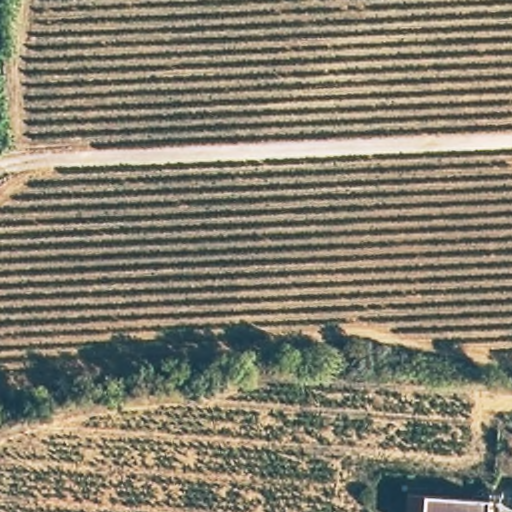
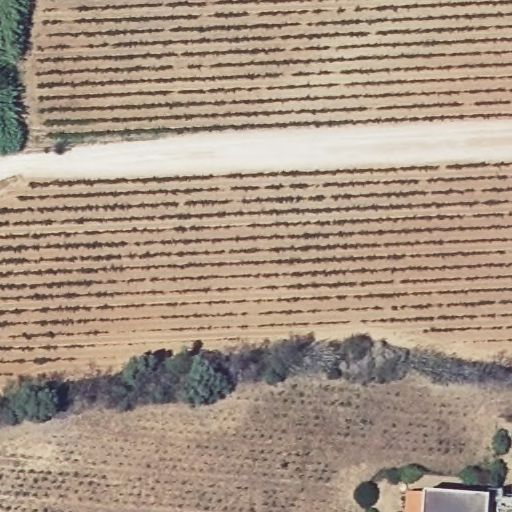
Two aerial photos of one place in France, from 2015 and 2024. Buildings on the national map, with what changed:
unchanged [(408,502),(485,508),(485,512),(407,512),(408,502)]

